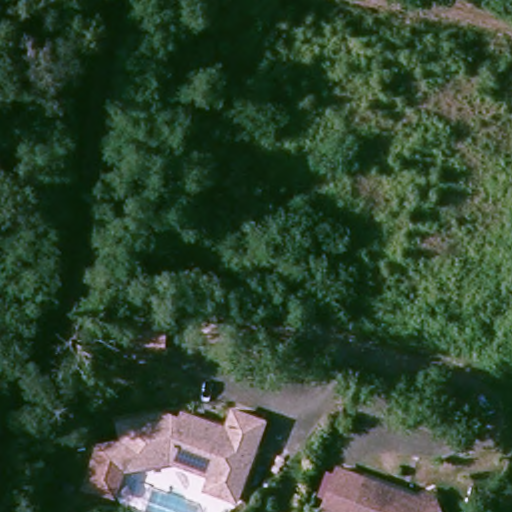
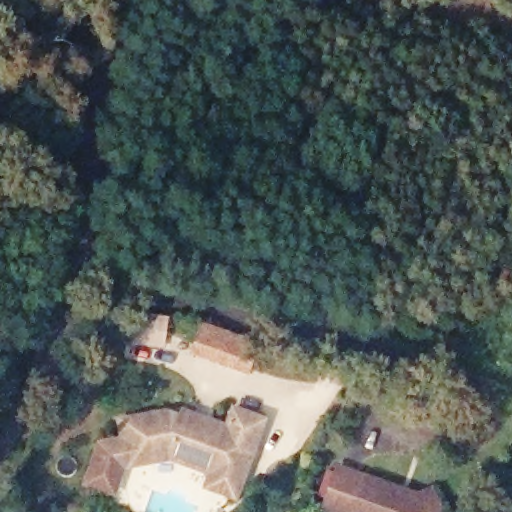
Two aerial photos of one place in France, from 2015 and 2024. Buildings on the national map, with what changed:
unchanged [(159,317),(156,345),(119,341),(122,313),(159,317)]
new [(202,322),(261,342),(251,375),(191,355),(202,322)]
unchanged [(207,474),(160,460),(123,467),(126,467),(115,498),(82,486),(99,441),(105,471),(98,438),(117,435),(115,421),(159,413),(178,419),(179,412),(191,416),(202,420),(224,427),(230,409),(261,419),(239,477),(231,499),(202,489),(207,474)]
unchanged [(332,467),(385,486),(410,495),(424,489),(434,512),(318,512),(315,511),(332,467)]

